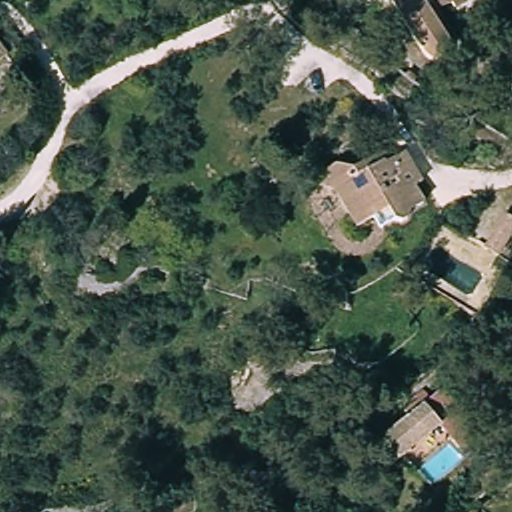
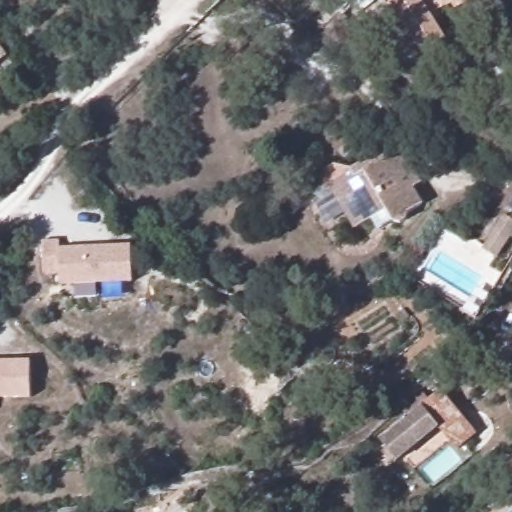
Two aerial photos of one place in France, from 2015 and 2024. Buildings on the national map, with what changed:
unchanged [(471,0),(472,3),(452,12),(450,7),(436,14),(440,20),(433,25),(444,42),(446,47),(446,51),(444,58),(441,62),(436,65),(430,64),(425,62),(419,58),(383,0),(384,0),(471,0)]
unchanged [(0,62),(0,40),(11,54),(0,62)]
unchanged [(317,217),(337,205),(330,191),(314,188),(318,173),(331,165),(349,169),(363,160),(367,167),(381,160),(382,163),(402,151),(419,182),(411,187),(420,204),(405,211),(404,220),(397,224),(389,222),(383,210),(351,230),(330,242),(317,217)]
unchanged [(478,249),(500,214),(512,220),(512,240),(510,239),(507,237),(494,258),(478,249)]
new [(60,240),(59,247),(132,245),(135,280),(59,285),(59,273),(43,275),(42,241),(60,240)]
new [(32,397),(0,398),(0,360),(31,360),(32,397)]
unchanged [(438,390),(454,410),(397,459),(380,440),(406,418),(438,390)]

